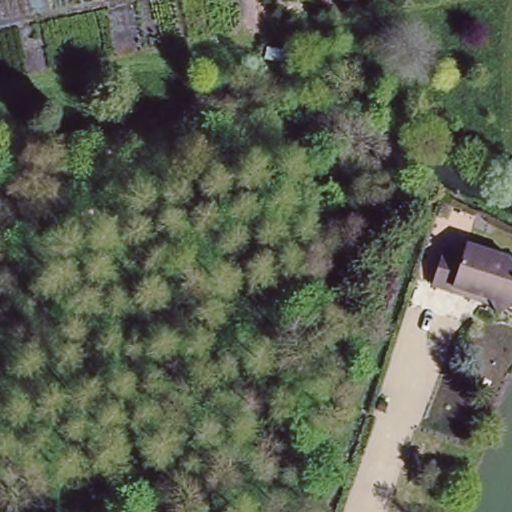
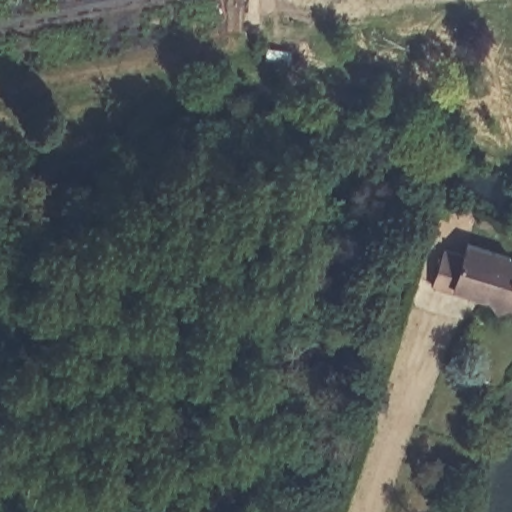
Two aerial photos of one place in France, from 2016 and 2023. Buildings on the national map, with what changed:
unchanged [(436,290),(444,251),(464,255),(466,242),(509,252),(512,257),(512,297),(498,305),(495,300),(475,297),(436,290)]

